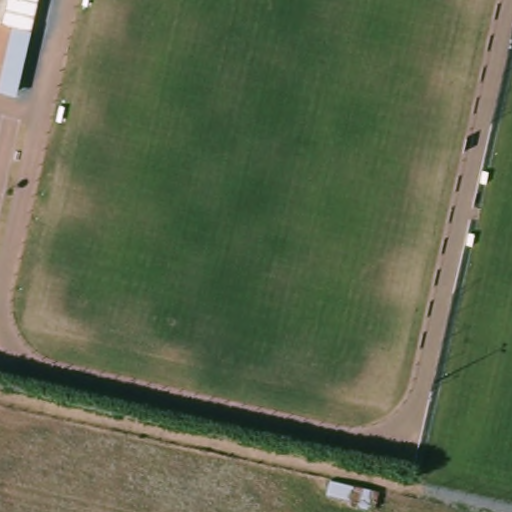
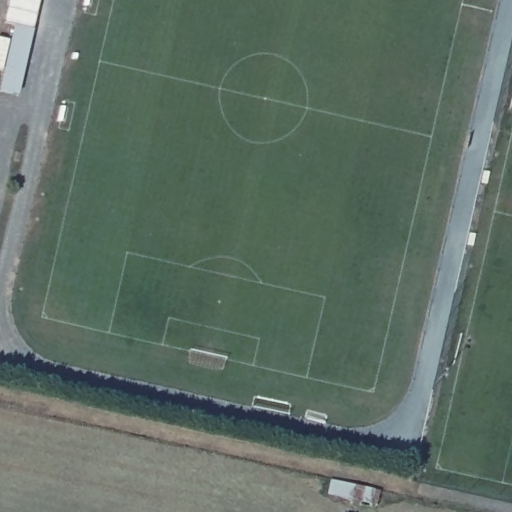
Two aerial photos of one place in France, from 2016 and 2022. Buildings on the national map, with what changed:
unchanged [(11,94),(0,91),(0,49),(12,0),(33,0),(11,94)]
unchanged [(332,482),(374,491),(371,504),(329,495),(332,482)]

